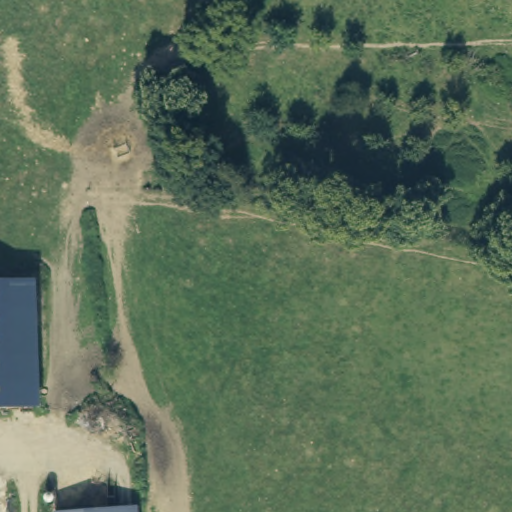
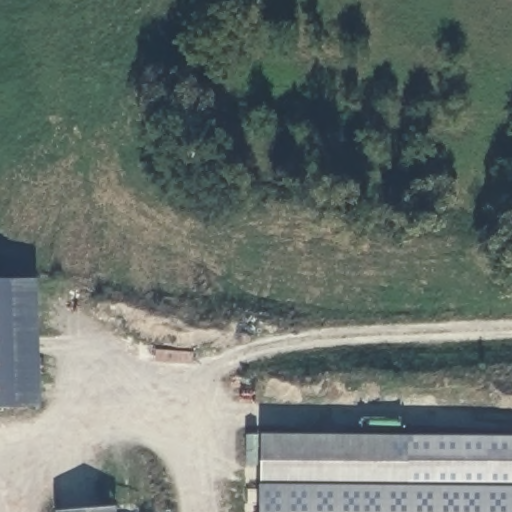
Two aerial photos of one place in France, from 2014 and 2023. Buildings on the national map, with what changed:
unchanged [(36,282),(38,370),(39,408),(9,409),(8,373),(6,283),(36,282)]
unchanged [(0,283),(6,283),(8,373),(9,409),(0,409),(0,283)]
new [(259,512),(260,435),(512,438),(512,512),(259,512)]
unchanged [(137,503),(138,512),(54,512),(54,508),(112,505),(137,503)]

